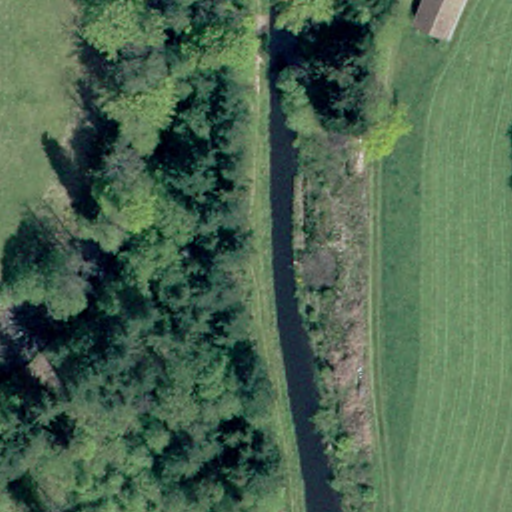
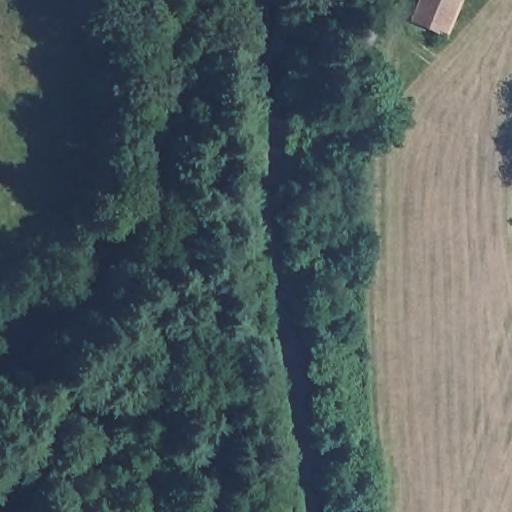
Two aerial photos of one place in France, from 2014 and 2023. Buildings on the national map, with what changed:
unchanged [(450,45),(412,29),(423,0),(468,0),(450,45)]
unchanged [(222,31),(204,31),(203,13),(221,12),(222,31)]
unchanged [(261,32),(244,32),(244,12),(261,12),(261,32)]

